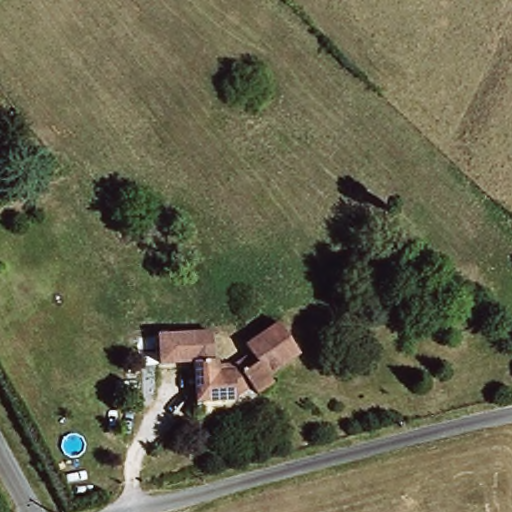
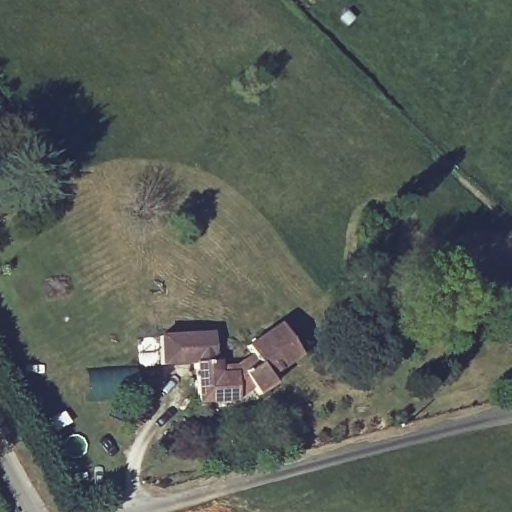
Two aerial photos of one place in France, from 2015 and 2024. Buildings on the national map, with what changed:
unchanged [(254,395),(246,395),(246,401),(206,405),(201,363),(168,366),(166,338),(218,334),(221,362),(241,361),(242,366),(260,366),(253,355),(273,343),(288,336),(306,367),(291,378),(273,387),(278,395),(261,404),(254,395)]

